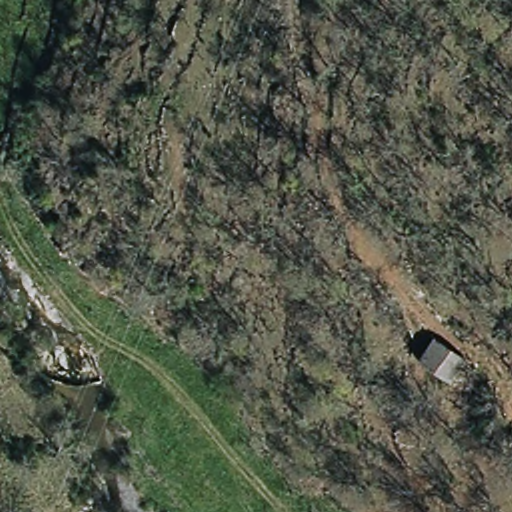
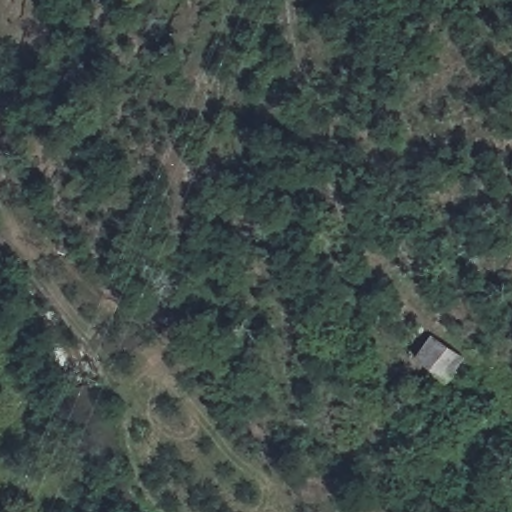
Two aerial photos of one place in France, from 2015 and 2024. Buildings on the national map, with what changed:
unchanged [(433,333),(467,359),(453,384),(417,356),(433,333)]

